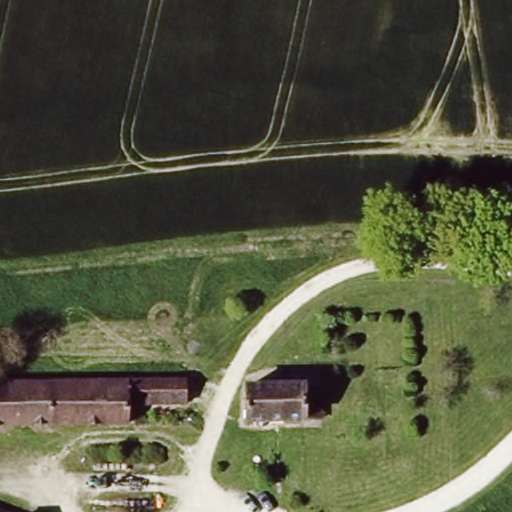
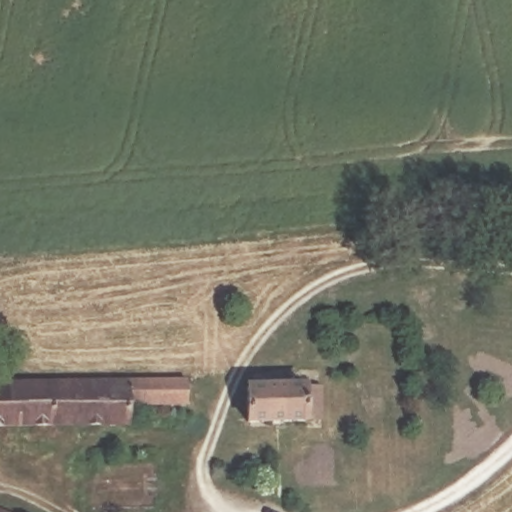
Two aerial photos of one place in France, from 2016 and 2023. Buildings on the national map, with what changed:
unchanged [(189,370),(189,394),(190,401),(175,402),(140,404),(142,430),(0,438),(0,381),(189,370)]
unchanged [(308,376),(312,415),(255,420),(252,381),(308,376)]
unchanged [(12,512),(0,512),(0,508),(12,512)]

